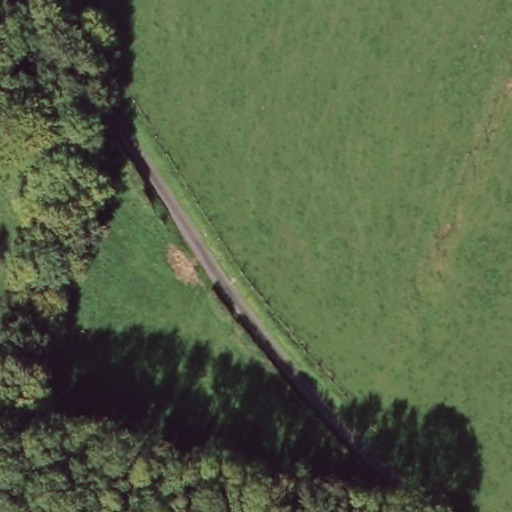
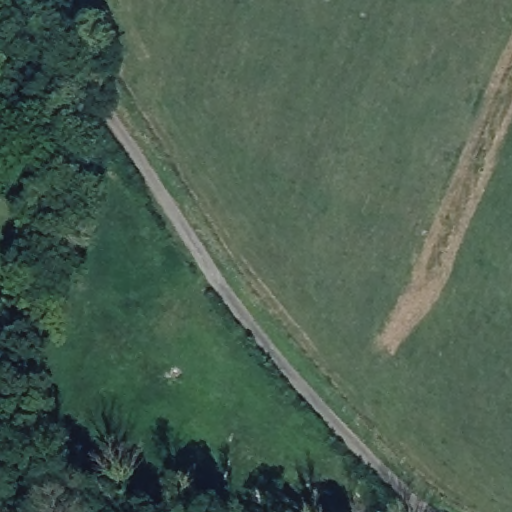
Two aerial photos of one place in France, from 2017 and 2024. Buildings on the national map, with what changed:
unchanged [(45,496),(41,512),(21,512),(25,494),(45,496)]

